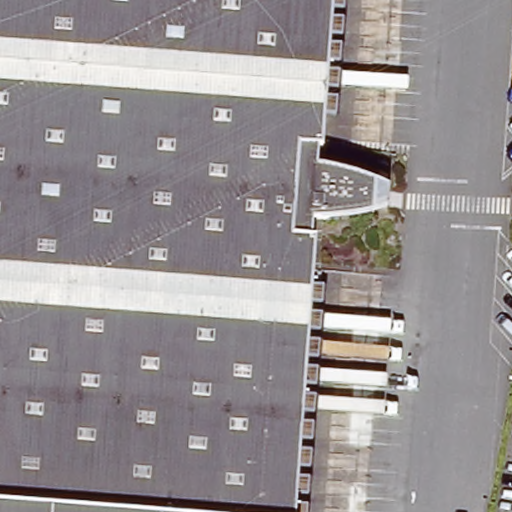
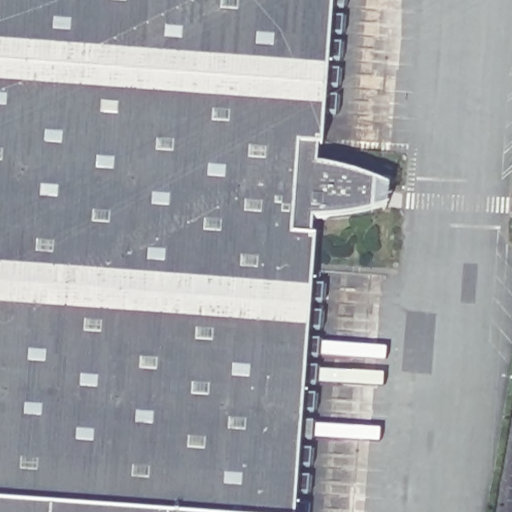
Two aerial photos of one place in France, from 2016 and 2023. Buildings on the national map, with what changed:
unchanged [(326,145),(324,164),(384,177),(399,182),(397,205),(382,207),(319,217),(319,235),(324,237),(303,512),(0,512),(0,0),(341,0),(331,145),(326,145)]

